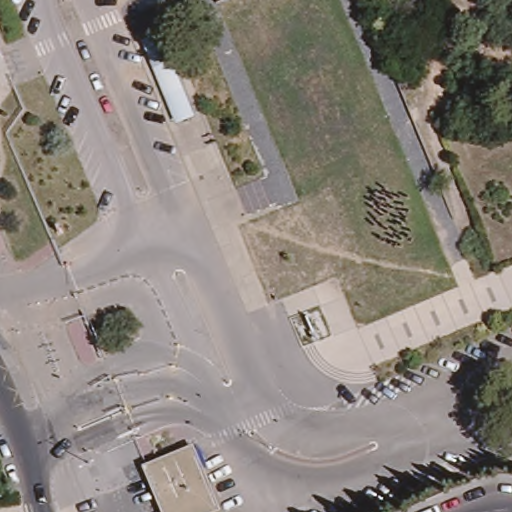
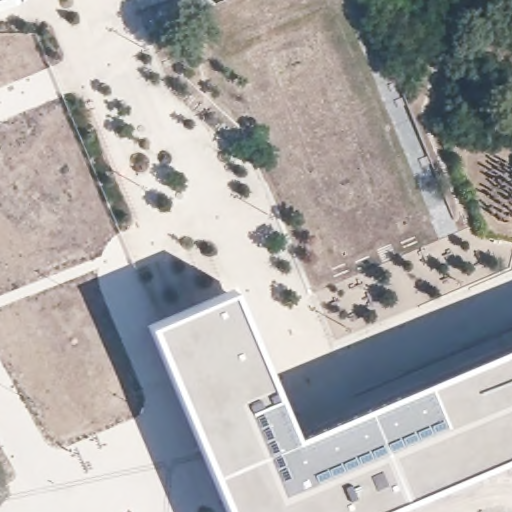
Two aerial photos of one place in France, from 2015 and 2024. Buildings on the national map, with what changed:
new [(230,281),(238,280),(293,415),(362,388),(401,380),(512,336),(512,444),(355,509),(356,512),(216,512),(140,327),(144,313),(226,279),(230,281)]
demolished [(193,453),(217,509),(211,512),(169,512),(151,470),(193,453)]

